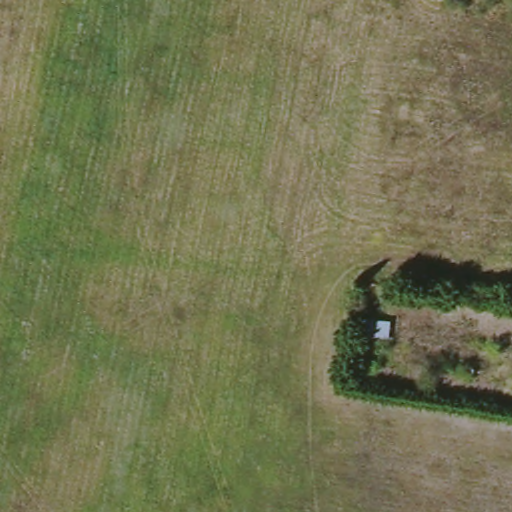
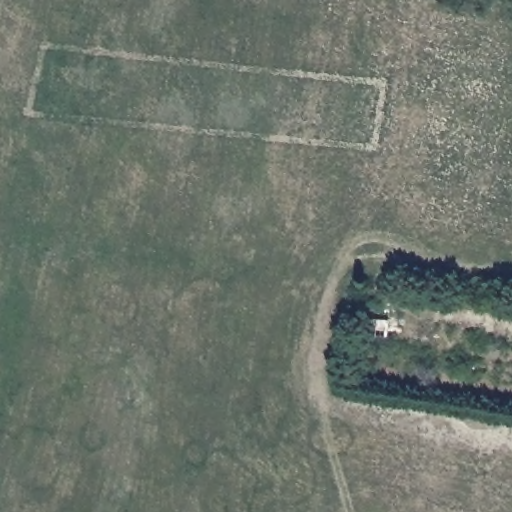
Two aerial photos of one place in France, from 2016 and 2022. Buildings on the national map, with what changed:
unchanged [(365,320),(393,322),(393,338),(364,337),(365,320)]

